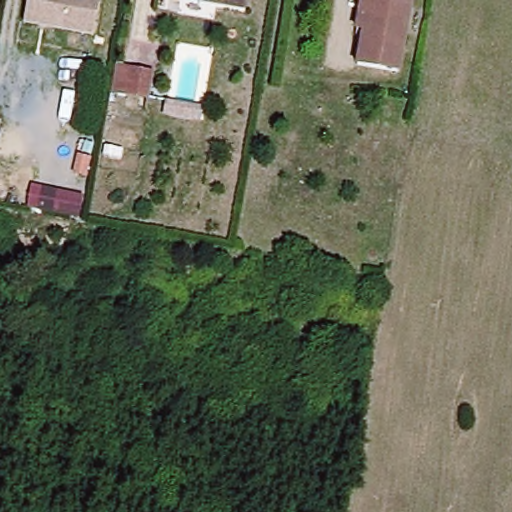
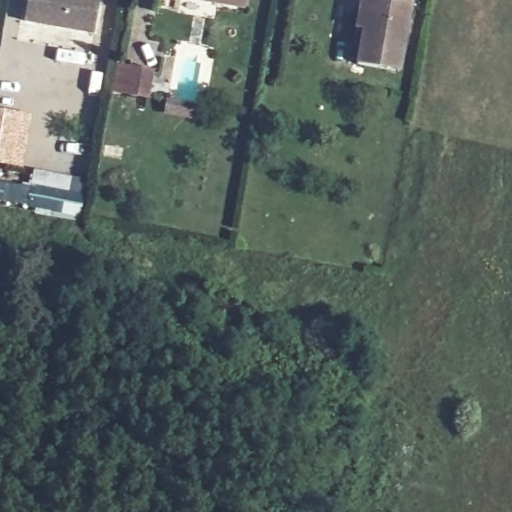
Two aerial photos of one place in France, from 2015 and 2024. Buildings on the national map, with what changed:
unchanged [(100,0),(94,33),(25,21),(28,0),(100,0)]
unchanged [(210,0),(250,0),(249,6),(210,0)]
unchanged [(403,66),(359,60),(364,25),(357,24),(361,0),(377,0),(414,0),(403,66)]
unchanged [(152,100),(129,97),(115,95),(119,67),(133,70),(156,74),(152,100)]
new [(31,113),(21,167),(0,164),(0,107),(31,113)]
unchanged [(84,195),(81,219),(38,210),(40,186),(84,195)]

